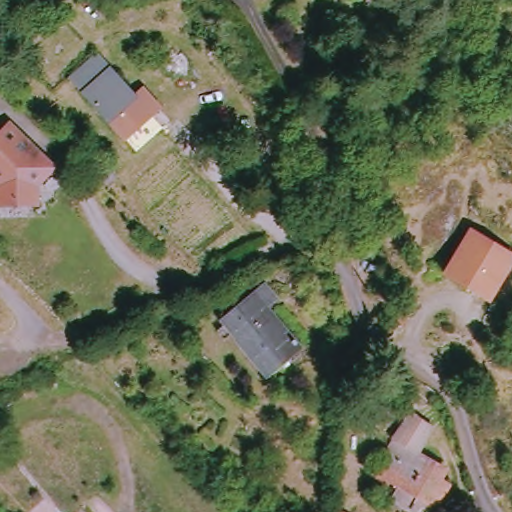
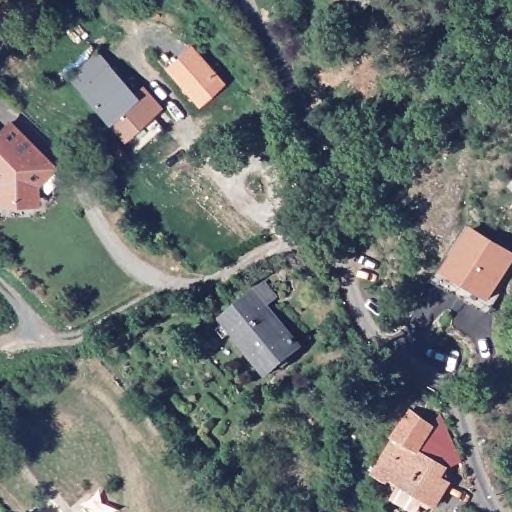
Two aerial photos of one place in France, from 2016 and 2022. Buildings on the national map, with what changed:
unchanged [(13,42),(26,28),(35,37),(21,51),(13,42)]
new [(165,69),(192,44),(226,85),(200,108),(165,69)]
unchanged [(132,97),(107,119),(70,77),(94,55),(132,97)]
unchanged [(132,97),(143,86),(162,106),(123,140),(107,119),(132,97)]
unchanged [(35,211),(0,210),(0,124),(5,119),(53,165),(37,186),(35,211)]
unchanged [(475,231),(512,257),(512,269),(490,302),(447,273),(475,231)]
unchanged [(257,375),(230,341),(232,340),(216,320),(260,285),(268,295),(260,302),(294,346),(257,375)]
unchanged [(383,376),(392,363),(414,377),(405,391),(383,376)]
unchanged [(145,382),(162,400),(155,408),(137,388),(145,382)]
unchanged [(437,476),(445,481),(432,505),(387,478),(385,481),(378,478),(370,473),(389,438),(400,420),(423,433),(413,451),(442,467),(437,476)]

